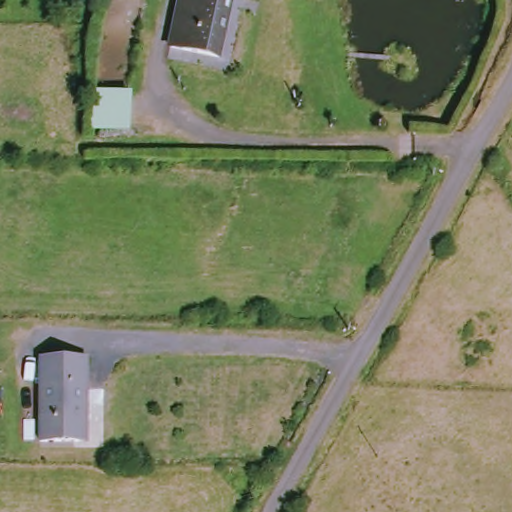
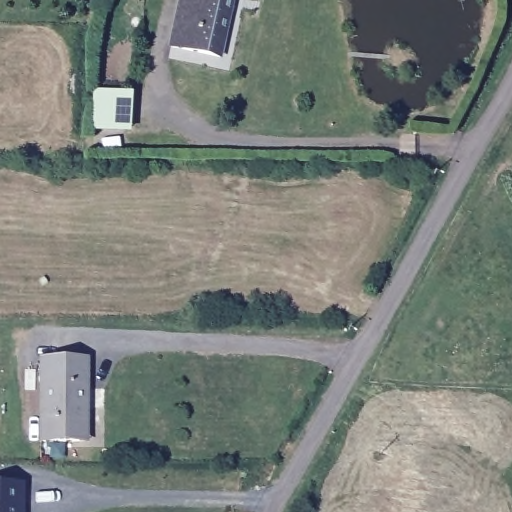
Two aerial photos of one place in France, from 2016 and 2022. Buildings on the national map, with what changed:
unchanged [(231,59),(181,51),(191,0),(244,0),(231,59)]
unchanged [(76,443),(38,442),(39,360),(85,361),(84,408),(83,443),(76,443)]
new [(0,512),(0,484),(24,483),(24,512),(0,512)]

